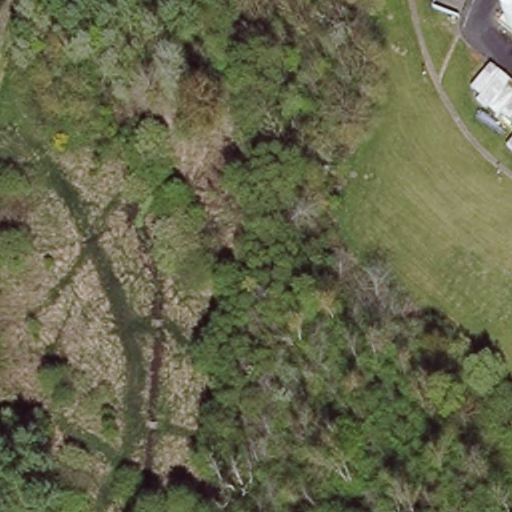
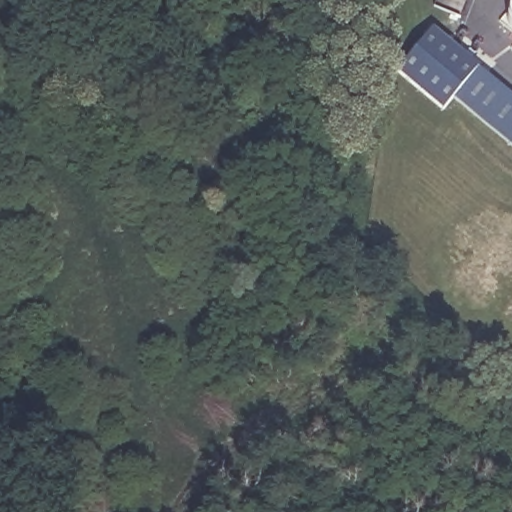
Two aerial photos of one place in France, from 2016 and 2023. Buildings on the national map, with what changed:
new [(512,10),(512,32),(501,23),(512,10)]
new [(432,28),(478,66),(512,94),(512,146),(452,96),(443,110),(396,72),(432,28)]
unchanged [(511,41),(512,40),(512,42),(511,41)]
demolished [(465,91),(489,65),(512,86),(512,128),(465,91)]

